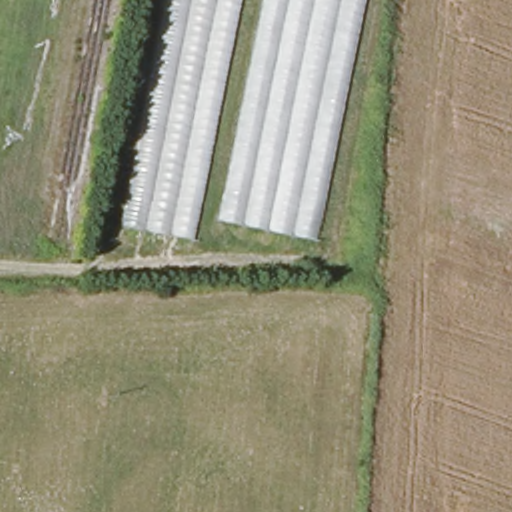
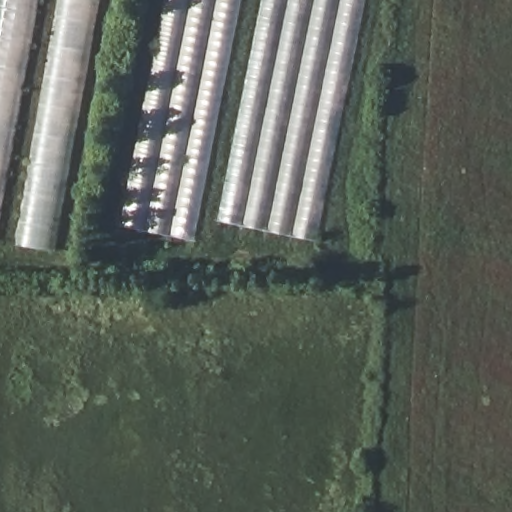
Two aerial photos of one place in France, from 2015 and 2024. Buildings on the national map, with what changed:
new [(0,220),(0,0),(36,0),(0,220)]
new [(59,0),(98,0),(55,252),(16,245),(59,0)]
unchanged [(116,227),(164,0),(243,0),(196,242),(116,227)]
unchanged [(218,221),(262,0),(367,0),(318,242),(218,221)]

